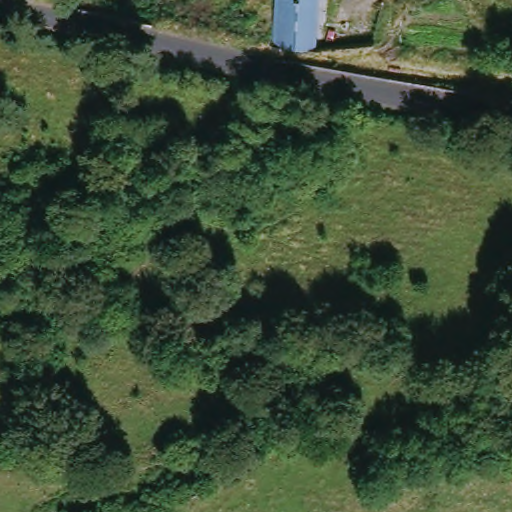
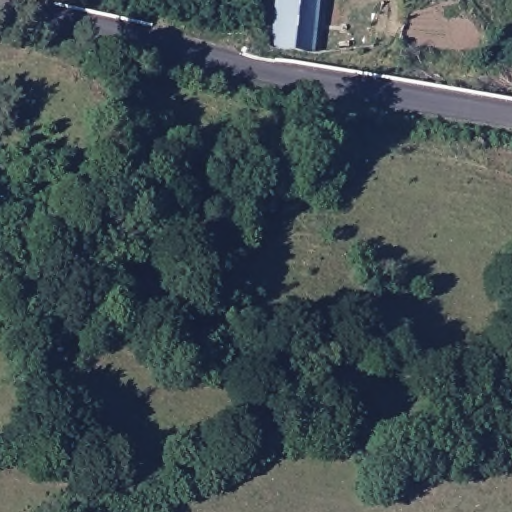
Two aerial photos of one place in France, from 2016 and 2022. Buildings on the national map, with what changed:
unchanged [(279,51),(280,0),(321,0),(322,58),(279,51)]

